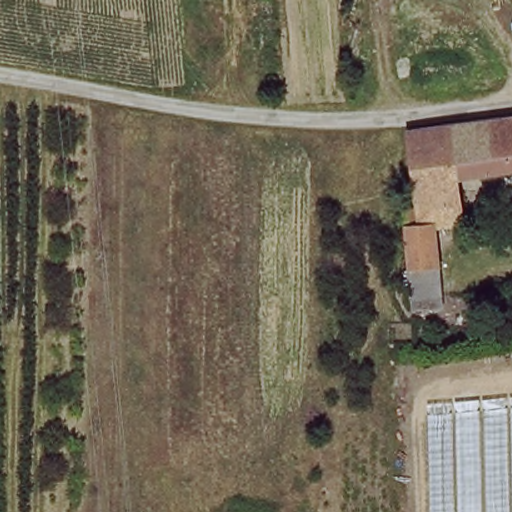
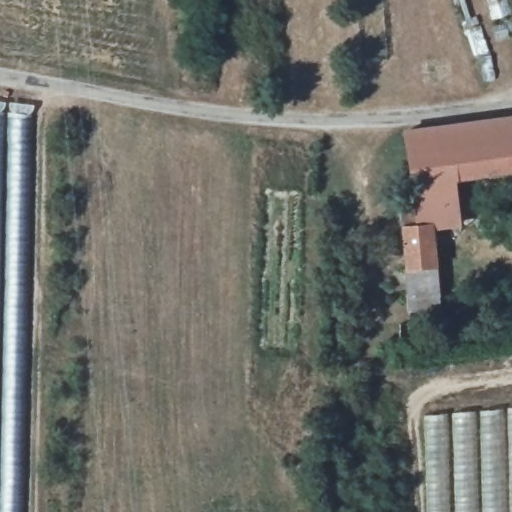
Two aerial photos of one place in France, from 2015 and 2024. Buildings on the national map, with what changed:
new [(20,512),(0,512),(0,104),(29,106),(20,512)]
unchanged [(400,225),(417,224),(410,129),(512,114),(512,176),(464,183),(466,223),(442,227),(447,309),(411,313),(400,225)]
unchanged [(512,398),(512,512),(428,512),(425,406),(512,398)]

